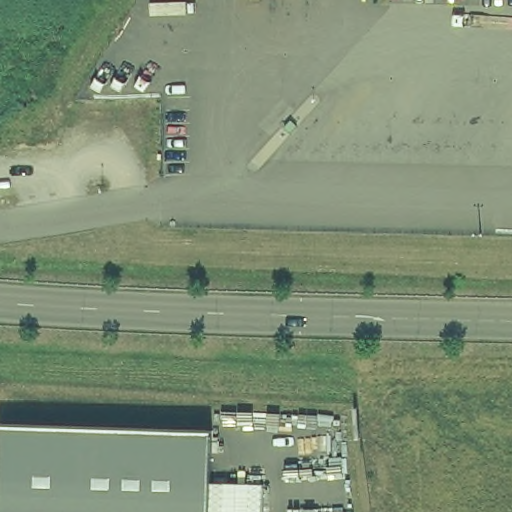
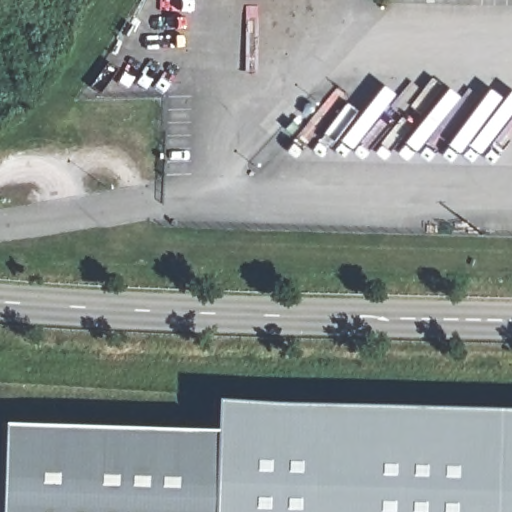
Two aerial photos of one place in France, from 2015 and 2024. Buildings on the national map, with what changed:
new [(512,414),(512,512),(210,512),(212,431),(214,398),(512,414)]
unchanged [(0,439),(0,424),(212,431),(210,512),(0,512),(0,439)]

